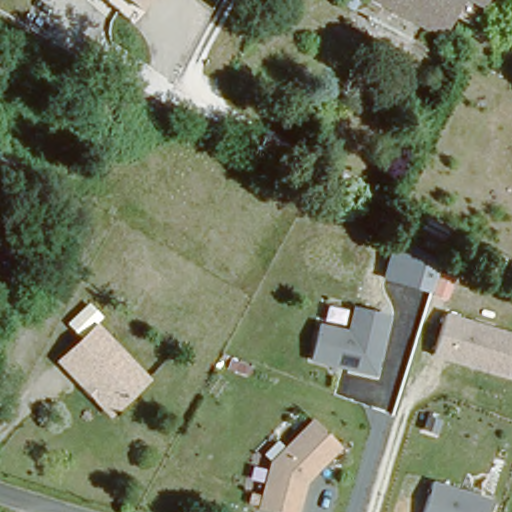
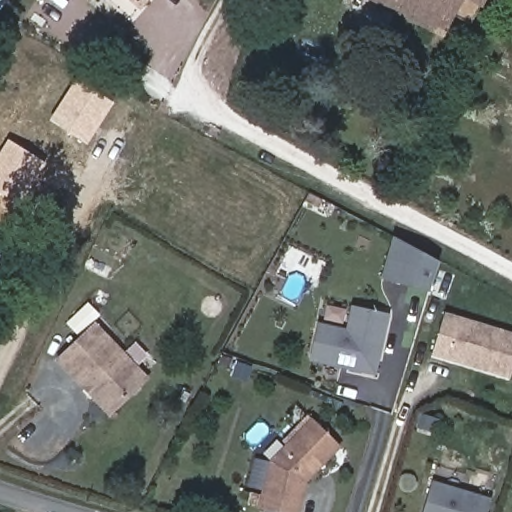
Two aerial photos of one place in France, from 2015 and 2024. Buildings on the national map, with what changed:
unchanged [(130,19),(108,0),(149,0),(130,19)]
unchanged [(382,3),(376,0),(482,0),(469,24),(453,15),(443,37),(382,3)]
new [(86,144),(55,124),(59,119),(53,115),(76,78),(114,102),(86,144)]
new [(44,162),(39,169),(42,172),(30,191),(27,189),(19,203),(0,192),(0,159),(11,142),(44,162)]
new [(439,263),(429,292),(383,279),(394,238),(439,263)]
unchanged [(312,360),(320,323),(348,329),(352,306),(390,314),(376,375),(312,360)]
unchanged [(509,380),(435,357),(446,313),(512,334),(512,371),(509,380)]
unchanged [(67,378),(48,358),(83,323),(90,330),(115,358),(122,365),(132,376),(118,392),(100,412),(72,383),(67,378)]
unchanged [(276,512),(259,507),(270,460),(313,420),(340,446),(308,481),(301,512),(276,512)]
unchanged [(491,498),(487,512),(425,512),(433,480),(491,498)]

